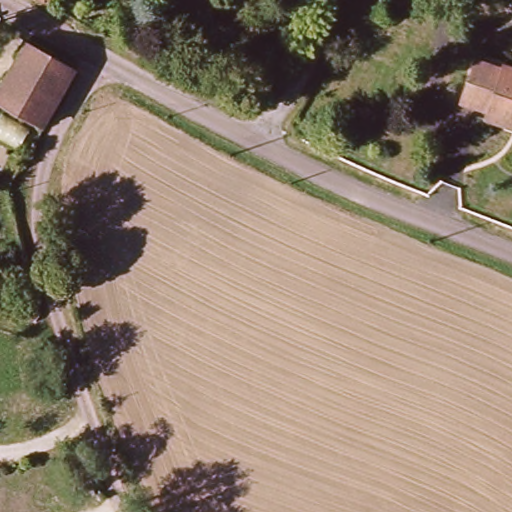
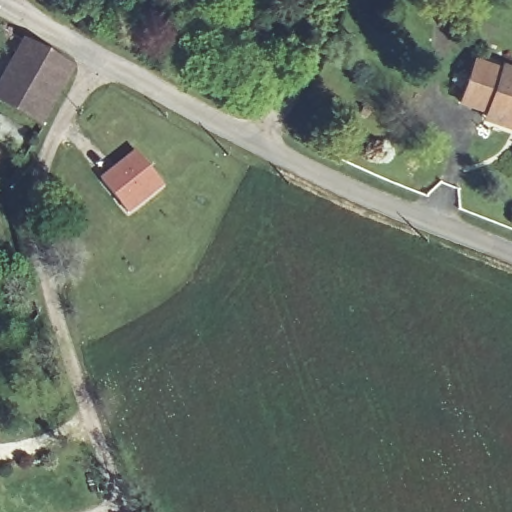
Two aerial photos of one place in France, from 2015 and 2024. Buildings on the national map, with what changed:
unchanged [(44,6),(34,0),(47,0),(44,6)]
unchanged [(0,105),(0,78),(24,40),(73,67),(39,127),(0,105)]
unchanged [(483,122),(486,113),(459,104),(474,60),(498,70),(503,64),(512,67),(512,132),(483,122)]
new [(136,151),(165,187),(129,216),(99,178),(136,151)]

